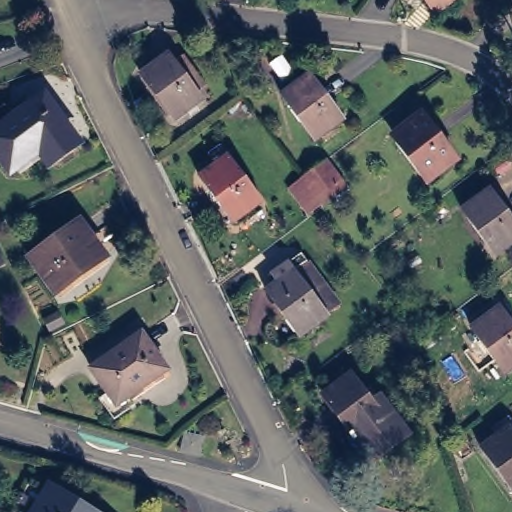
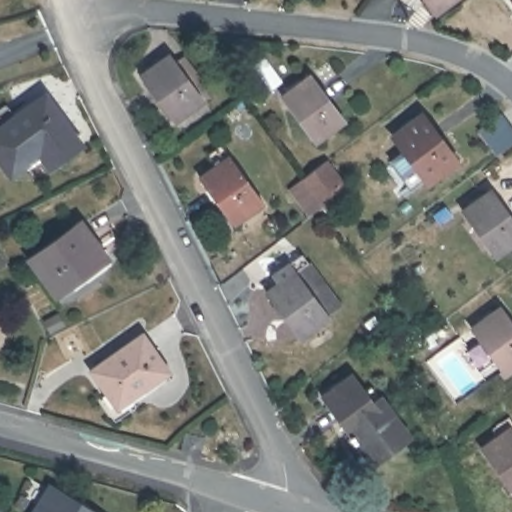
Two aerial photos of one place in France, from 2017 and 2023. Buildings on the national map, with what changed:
unchanged [(423,16),(412,0),(446,0),(423,16)]
unchanged [(177,121),(144,77),(172,55),(178,62),(187,55),(210,85),(202,92),(207,100),(177,121)]
unchanged [(345,115),(317,137),(285,92),(312,72),(345,115)]
unchanged [(0,156),(0,130),(48,96),(76,131),(73,133),(85,148),(57,168),(45,153),(13,175),(0,156)]
unchanged [(460,165),(431,186),(398,140),(425,121),(460,165)]
unchanged [(265,198),(237,218),(204,174),(232,153),(265,198)]
unchanged [(287,191),(300,181),(299,180),(324,161),(345,189),(320,207),(317,204),(305,214),(287,191)]
unchanged [(512,246),(498,256),(465,210),(493,190),(512,216),(512,246)]
unchanged [(111,259),(60,297),(33,260),(85,221),(111,259)]
unchanged [(297,339),(265,292),(292,272),(295,273),(307,264),(337,304),(325,314),(327,317),(297,339)]
unchanged [(512,372),(508,375),(476,329),(505,308),(512,318),(512,372)]
unchanged [(167,371),(116,406),(91,370),(142,335),(167,371)]
unchanged [(380,393),(407,431),(370,459),(321,392),(351,370),(372,398),(380,393)]
unchanged [(512,423),(512,480),(486,445),(512,423)]
unchanged [(97,512),(33,512),(50,484),(97,512)]

